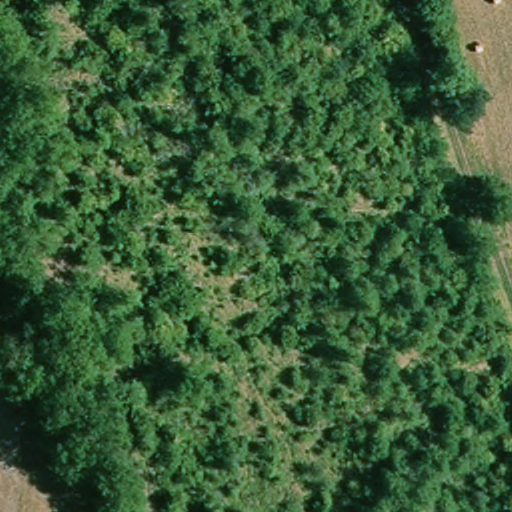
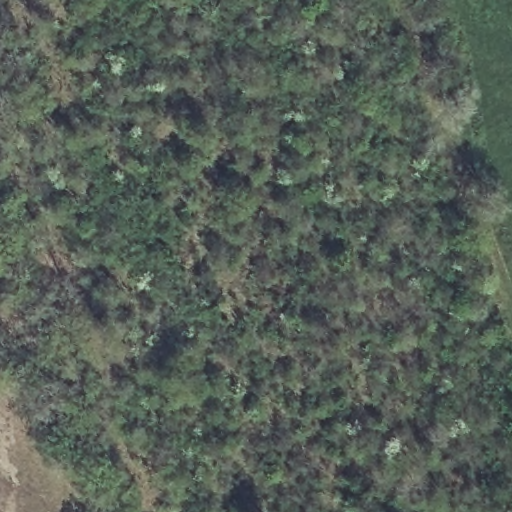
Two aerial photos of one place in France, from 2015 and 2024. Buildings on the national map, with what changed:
unchanged [(508,193),(512,191),(512,203),(508,193)]

